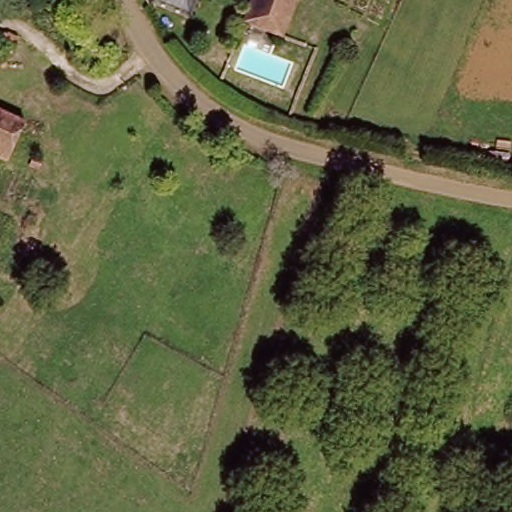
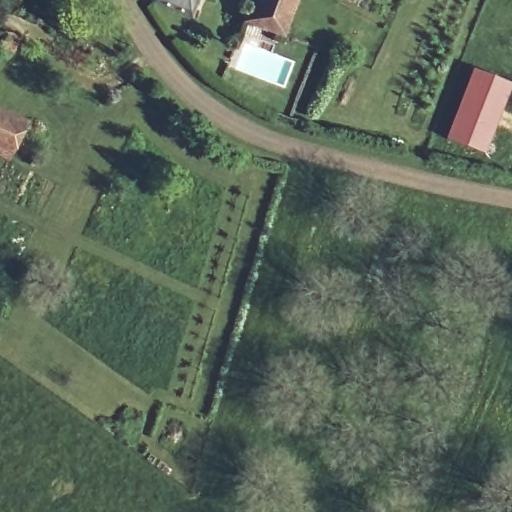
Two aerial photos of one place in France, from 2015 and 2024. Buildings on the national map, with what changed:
unchanged [(169,0),(199,0),(197,8),(169,0)]
unchanged [(295,0),(282,33),(247,20),(254,0),(295,0)]
new [(486,155),(447,138),(472,66),(512,83),(512,85),(486,155)]
unchanged [(15,155),(0,149),(0,106),(30,118),(15,155)]

